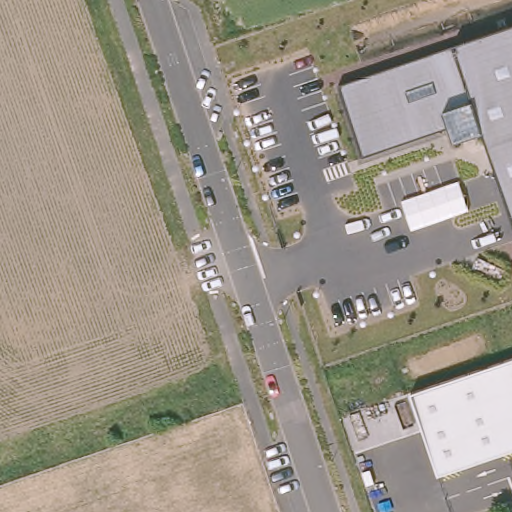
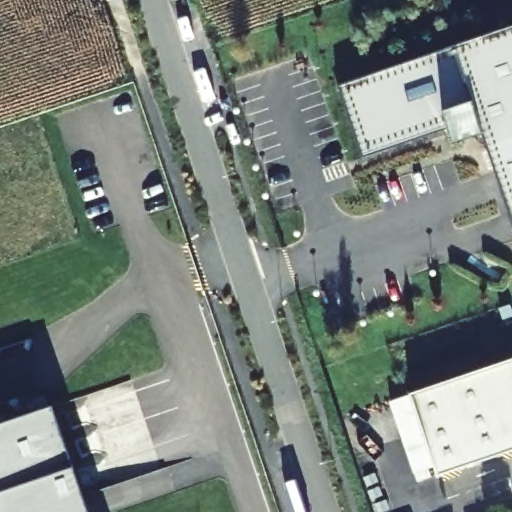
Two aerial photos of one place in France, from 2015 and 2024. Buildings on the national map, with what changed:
unchanged [(449,128),(363,157),(339,87),(453,46),(512,26),(512,222),(483,133),(453,143),(449,128)]
unchanged [(411,394),(512,359),(512,451),(438,476),(411,394)]
new [(89,512),(0,512),(0,425),(53,407),(89,512)]

